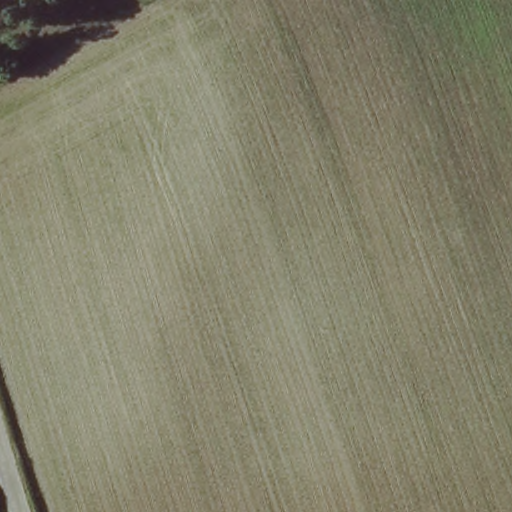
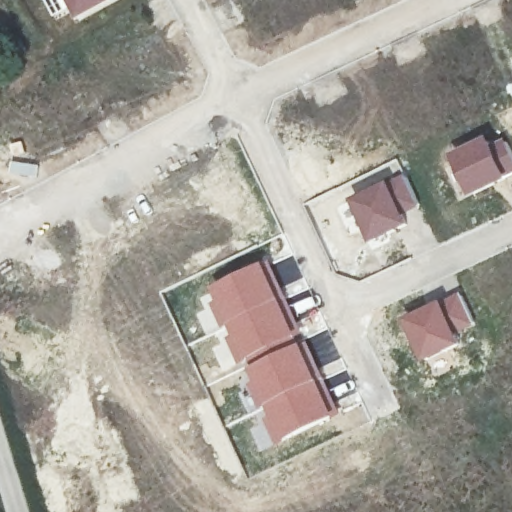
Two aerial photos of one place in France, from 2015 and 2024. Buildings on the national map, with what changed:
new [(70,9),(55,16),(45,0),(113,0),(76,20),(70,9)]
new [(490,136),(492,141),(504,135),(512,152),(512,176),(471,197),(452,155),(490,136)]
new [(406,173),(422,206),(407,214),(412,224),(372,244),(350,201),(406,173)]
new [(213,296),(211,291),(225,281),(269,261),(304,335),(284,345),(244,364),(238,366),(209,298),(213,296)]
new [(462,292),(477,326),(460,334),(465,346),(424,363),(405,320),(462,292)]
new [(246,370),(244,364),(284,345),(286,349),(306,339),(343,415),(315,429),(258,452),(247,427),(253,424),(251,420),(249,420),(248,417),(256,413),(237,374),(246,370)]

